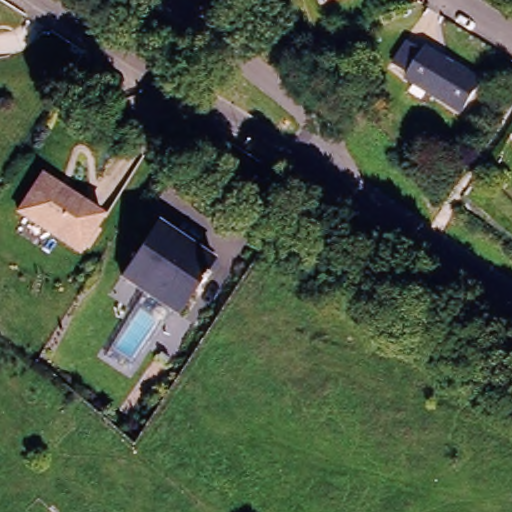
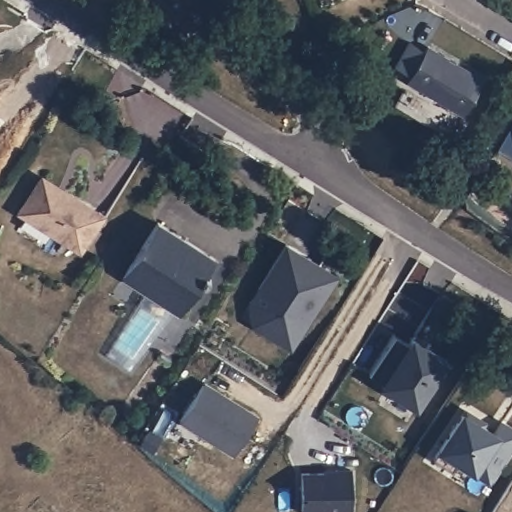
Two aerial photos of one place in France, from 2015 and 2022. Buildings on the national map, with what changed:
unchanged [(425,42),(480,76),(460,110),(405,75),(408,70),(394,61),(407,39),(422,48),(425,42)]
unchanged [(97,218),(75,254),(12,215),(35,178),(97,218)]
unchanged [(209,260),(201,273),(205,276),(199,284),(195,281),(175,315),(117,279),(152,224),(209,260)]
new [(259,288),(287,244),(321,266),(338,276),(330,287),(291,350),(252,325),(250,302),(259,288)]
new [(392,335),(407,345),(414,334),(427,343),(425,348),(445,361),(415,408),(380,387),(381,384),(367,375),(392,335)]
new [(203,382),(258,417),(233,455),(179,420),(203,382)]
new [(465,410),(484,423),(482,426),(493,434),(501,422),(512,429),(512,448),(489,484),(457,464),(452,473),(432,460),(465,410)]
new [(303,469),(327,469),(327,472),(337,473),(337,467),(353,467),(352,510),(302,509),(303,469)]

